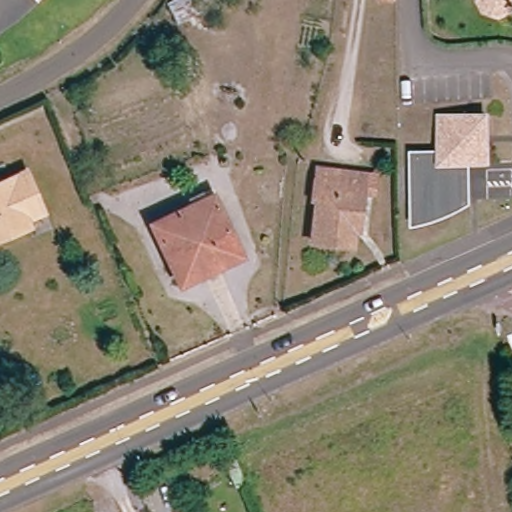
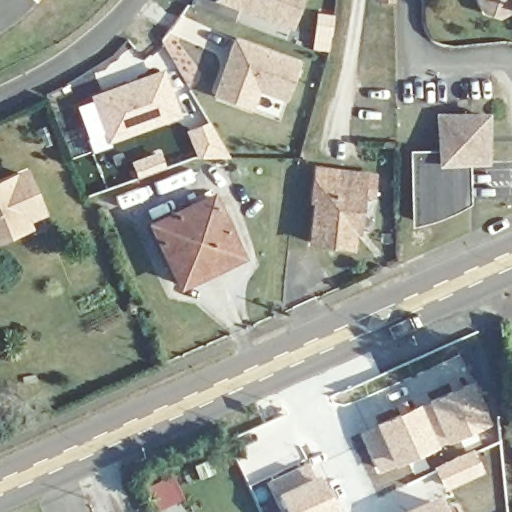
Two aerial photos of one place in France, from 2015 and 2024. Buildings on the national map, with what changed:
new [(303,0),(293,28),(218,0),(303,0)]
unchanged [(395,0),(395,1),(378,1),(378,0),(395,0)]
unchanged [(497,16),(483,11),(477,0),(512,0),(512,9),(511,9),(497,16)]
new [(261,91),(254,111),(213,96),(234,37),(300,60),(286,100),(261,91)]
new [(108,142),(90,96),(165,68),(181,116),(108,142)]
unchanged [(487,118),(487,164),(459,164),(459,177),(466,177),(466,203),(457,209),(447,213),(435,217),(424,220),(416,222),(416,157),(441,156),(441,118),(487,118)]
unchanged [(354,232),(352,251),(312,246),(317,203),(314,203),(318,172),(366,178),(359,232),(354,232)]
unchanged [(25,176),(41,215),(24,222),(26,228),(0,239),(0,186),(25,176)]
unchanged [(237,256),(197,275),(200,282),(181,291),(154,232),(213,205),(237,256)]
new [(376,425),(374,422),(471,382),(490,424),(396,467),(394,464),(379,473),(361,432),(376,425)]
new [(485,473),(444,491),(432,468),(474,449),(485,473)]
new [(318,479),(334,512),(283,512),(277,501),(268,483),(309,464),(318,479)]
new [(438,499),(445,512),(410,512),(438,499)]

